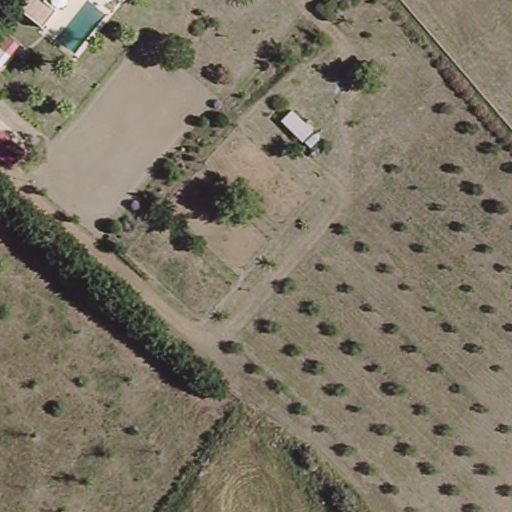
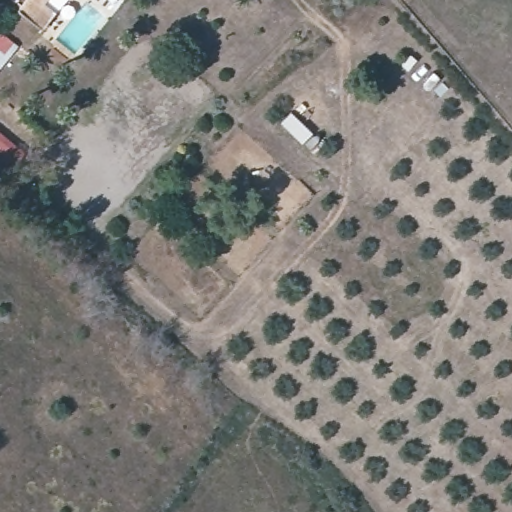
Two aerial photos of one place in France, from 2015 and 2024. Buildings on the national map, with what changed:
unchanged [(0,26),(18,3),(31,14),(11,38),(0,29),(0,26)]
unchanged [(0,63),(0,55),(4,59),(0,63)]
unchanged [(0,161),(0,139),(20,154),(10,168),(0,161)]

